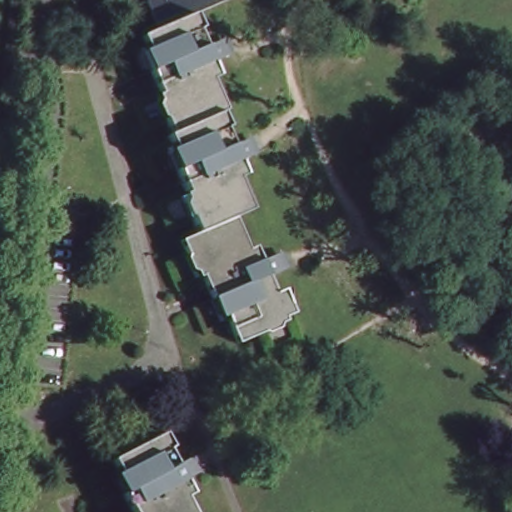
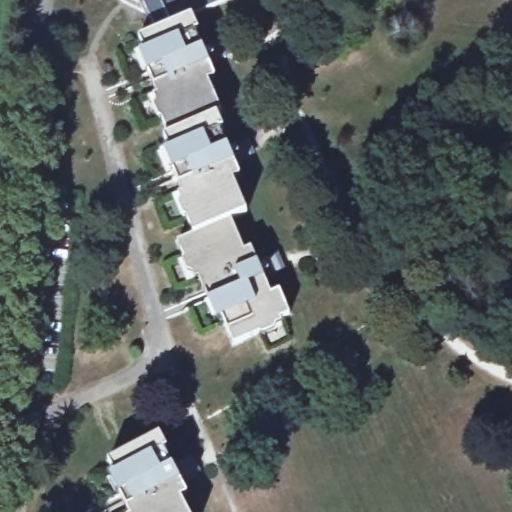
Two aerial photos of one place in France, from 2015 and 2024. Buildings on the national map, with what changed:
unchanged [(196,15),(203,32),(197,34),(205,51),(223,43),(231,62),(212,70),(217,81),(211,84),(224,111),(222,120),(228,131),(223,134),(230,149),(247,141),(255,158),(238,165),(245,181),(236,185),(249,216),(239,221),(251,251),(258,249),(264,261),(282,255),(290,273),(270,281),(276,296),(286,292),(296,317),(264,330),(266,335),(240,345),(220,299),(215,301),(198,258),(187,262),(178,239),(194,232),(190,220),(194,219),(175,173),(180,171),(166,140),(169,139),(162,122),(167,120),(147,72),(152,70),(139,37),(155,30),(144,2),(149,0),(232,0),(196,15)]
unchanged [(171,461),(187,453),(195,470),(178,477),(186,495),(180,497),(187,512),(129,512),(117,486),(122,485),(108,453),(156,432),(171,461)]

